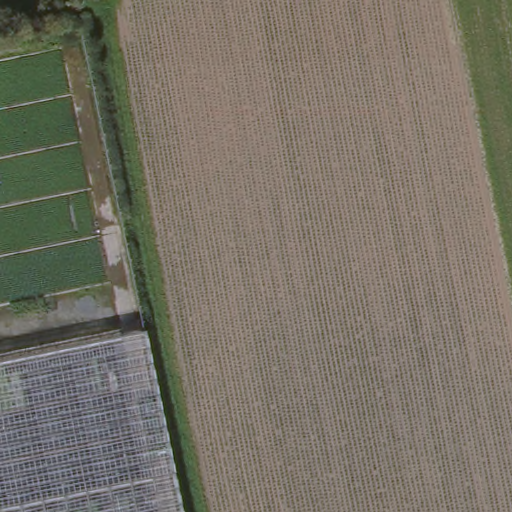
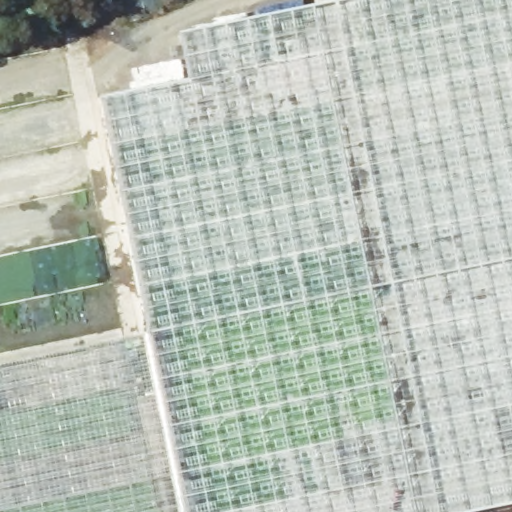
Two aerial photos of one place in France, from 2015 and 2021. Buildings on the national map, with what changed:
new [(144,338),(96,98),(188,79),(179,32),(337,0),(512,0),(512,507),(486,512),(180,512),(144,338)]
unchanged [(180,512),(0,512),(0,368),(144,338),(180,512)]

